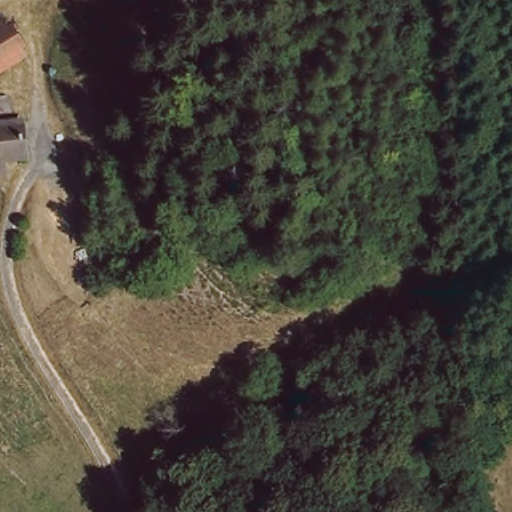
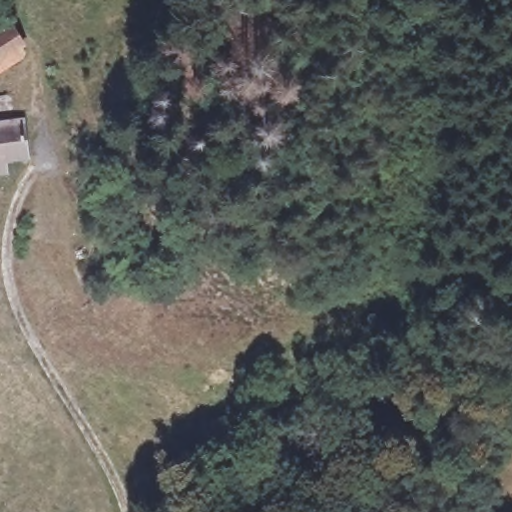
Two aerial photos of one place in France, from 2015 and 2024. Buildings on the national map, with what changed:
unchanged [(9,21),(28,52),(0,69),(0,27),(9,21)]
unchanged [(28,154),(0,156),(0,125),(24,121),(28,154)]

